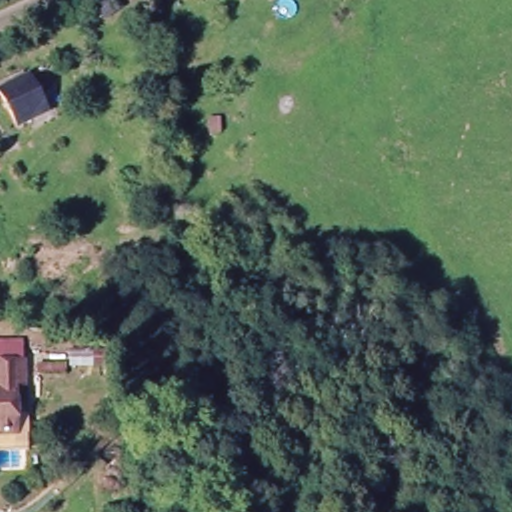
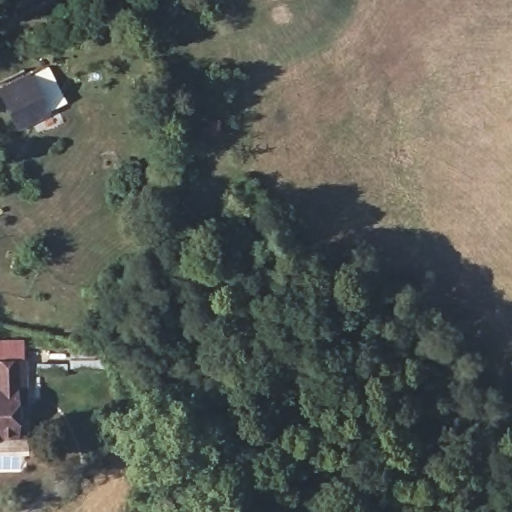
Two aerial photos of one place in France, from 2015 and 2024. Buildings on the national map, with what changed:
unchanged [(2,90),(36,75),(52,112),(19,127),(2,90)]
unchanged [(22,340),(24,363),(27,406),(16,407),(14,435),(0,435),(0,339),(22,340)]

